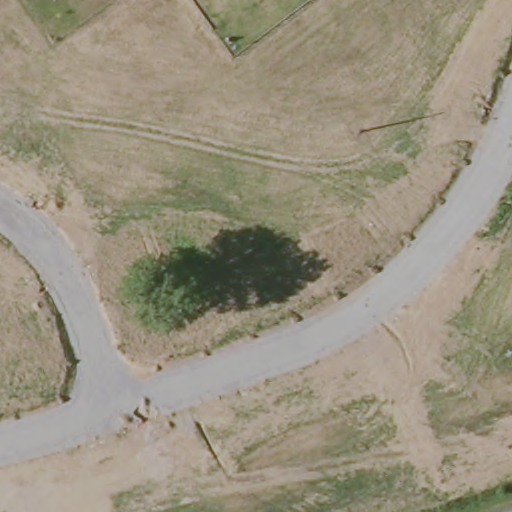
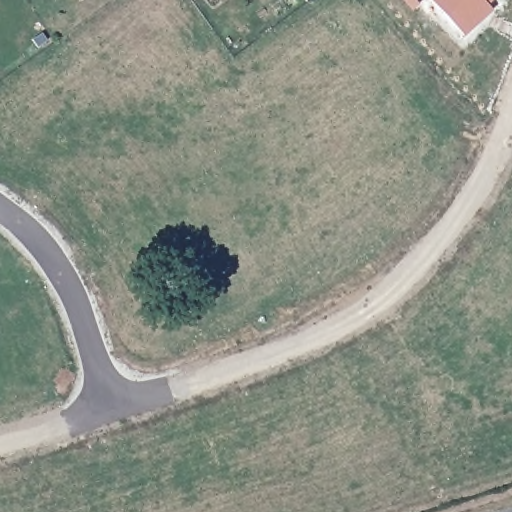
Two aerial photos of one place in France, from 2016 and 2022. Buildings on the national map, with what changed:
new [(495,12),(467,37),(434,0),(493,0),(490,4),(495,12)]

